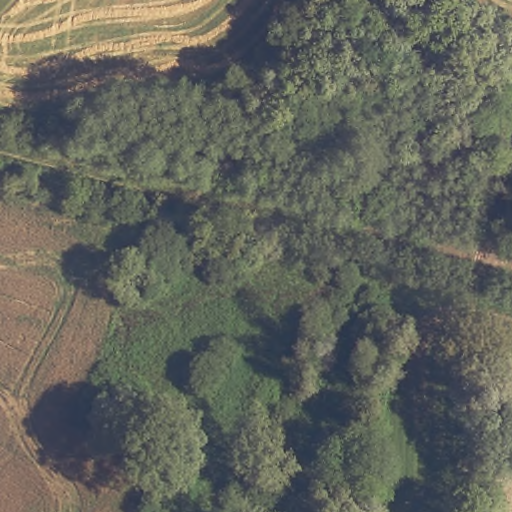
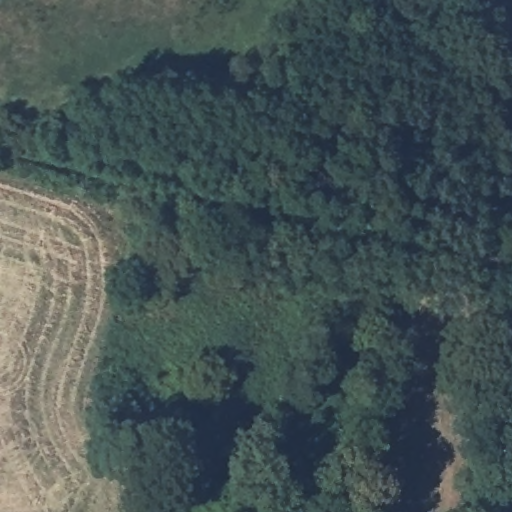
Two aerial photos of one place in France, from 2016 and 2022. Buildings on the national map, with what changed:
[]

